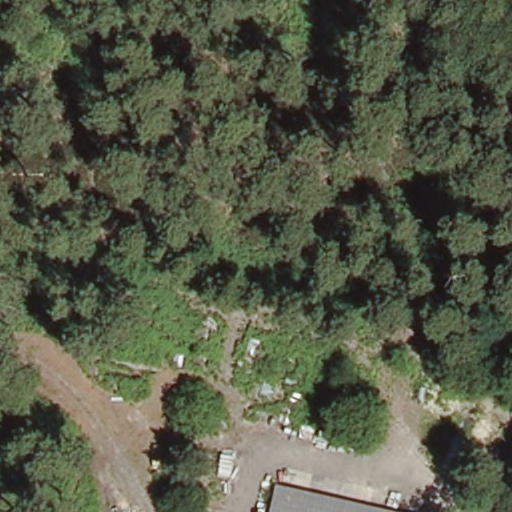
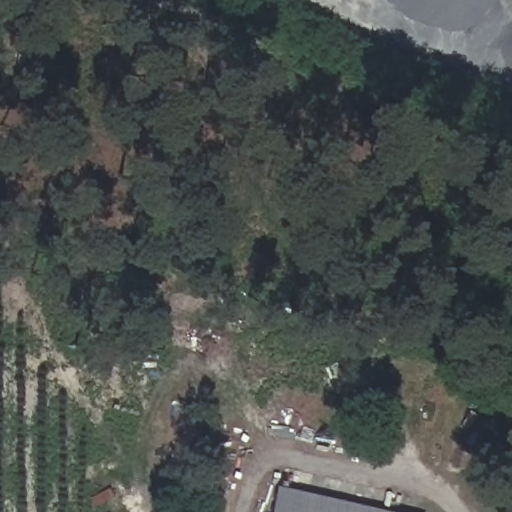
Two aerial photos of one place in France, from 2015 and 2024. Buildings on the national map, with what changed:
unchanged [(409,512),(271,512),(277,483),(409,512)]

